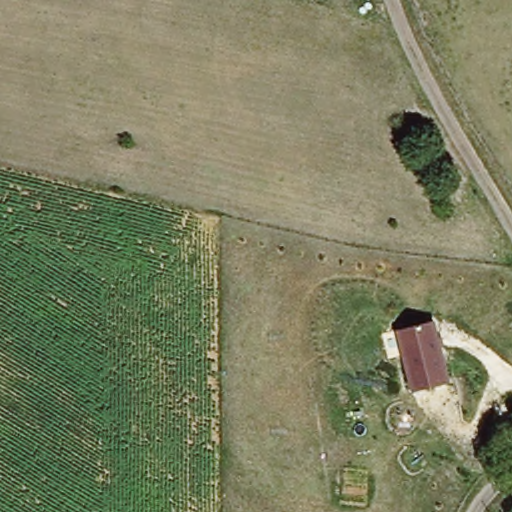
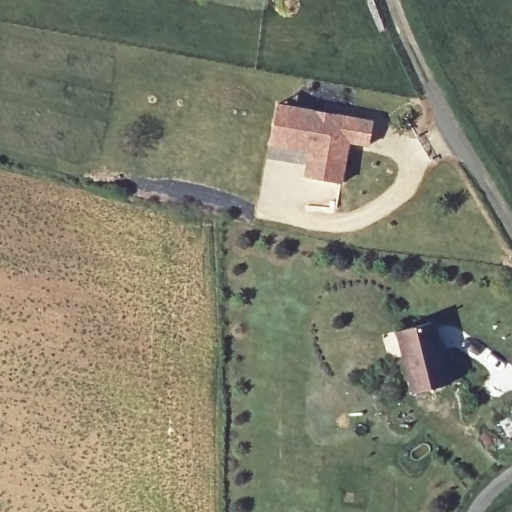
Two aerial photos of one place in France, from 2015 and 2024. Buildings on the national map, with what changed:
new [(375,119),(370,146),(350,143),(343,184),(303,176),(307,151),(270,144),(277,100),(375,119)]
unchanged [(411,396),(399,332),(436,325),(448,389),(411,396)]

